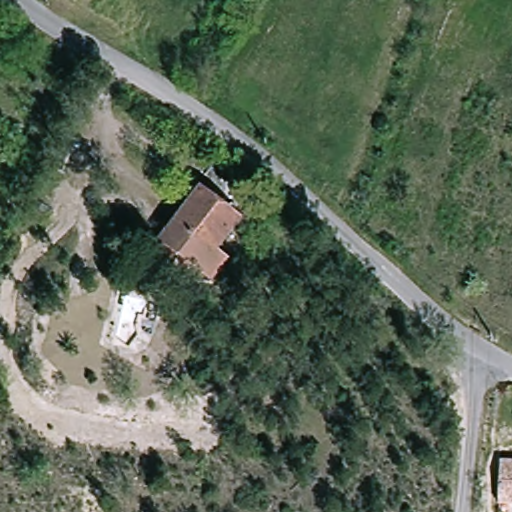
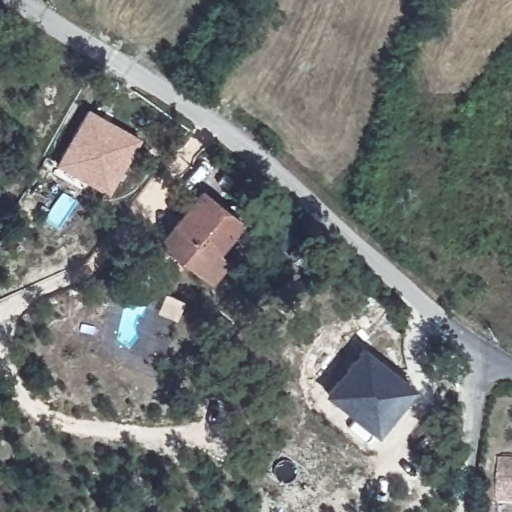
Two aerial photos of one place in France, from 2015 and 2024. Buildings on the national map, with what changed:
new [(88,108),(142,139),(110,196),(57,166),(88,108)]
unchanged [(243,217),(218,249),(230,256),(213,277),(164,237),(205,186),(243,217)]
new [(328,391),(363,346),(415,387),(379,435),(328,391)]
unchanged [(501,460),(512,461),(512,502),(500,502),(501,460)]

